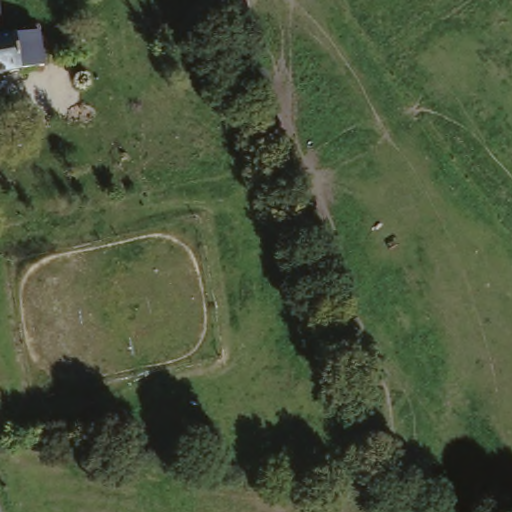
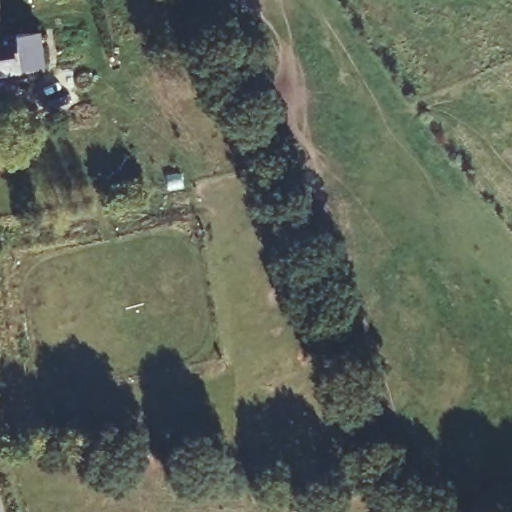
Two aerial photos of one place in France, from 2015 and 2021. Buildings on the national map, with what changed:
unchanged [(10,41),(38,40),(38,70),(0,71),(0,41),(10,41)]
unchanged [(36,400),(52,398),(55,415),(49,415),(37,416),(36,400)]

